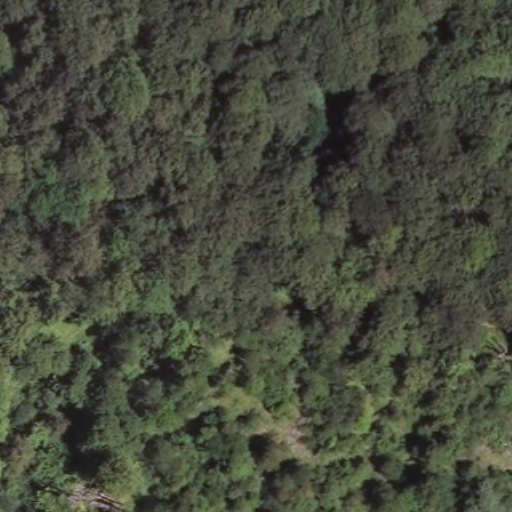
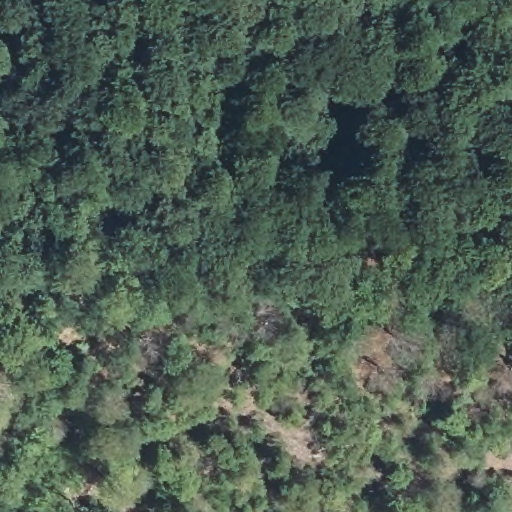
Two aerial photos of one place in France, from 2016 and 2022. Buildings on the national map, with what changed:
[]

